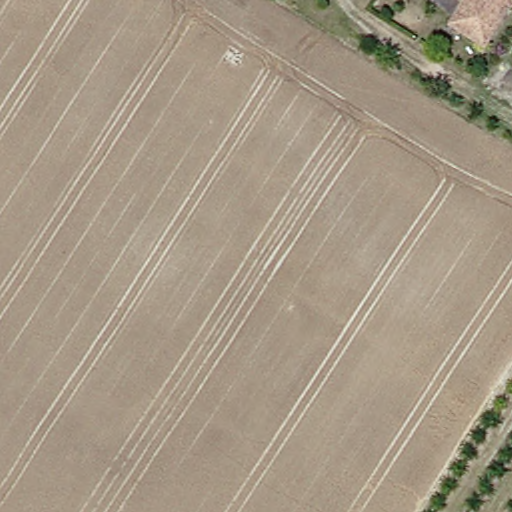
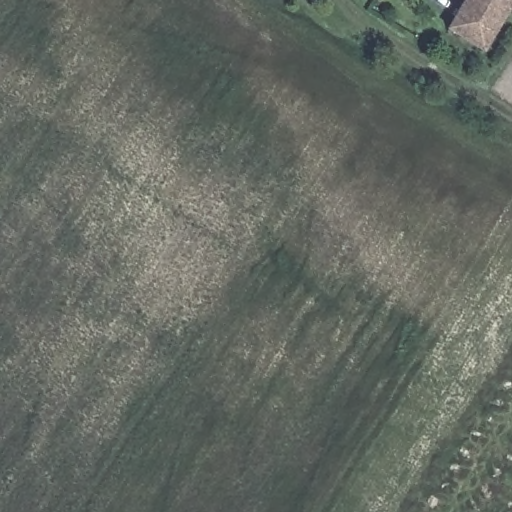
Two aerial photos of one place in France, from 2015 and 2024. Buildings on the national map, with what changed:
unchanged [(480,48),(444,28),(462,0),(512,0),(512,7),(507,4),(480,48)]

